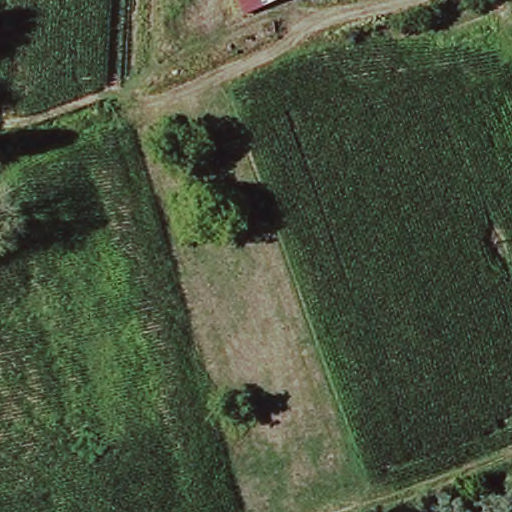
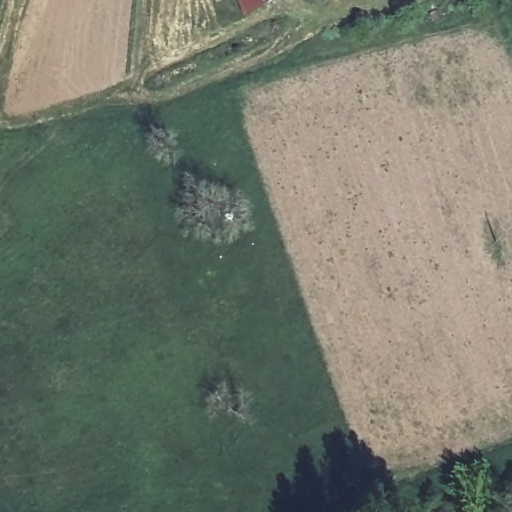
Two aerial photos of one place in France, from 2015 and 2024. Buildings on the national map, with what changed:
unchanged [(233,0),(280,0),(240,17),(233,0)]

